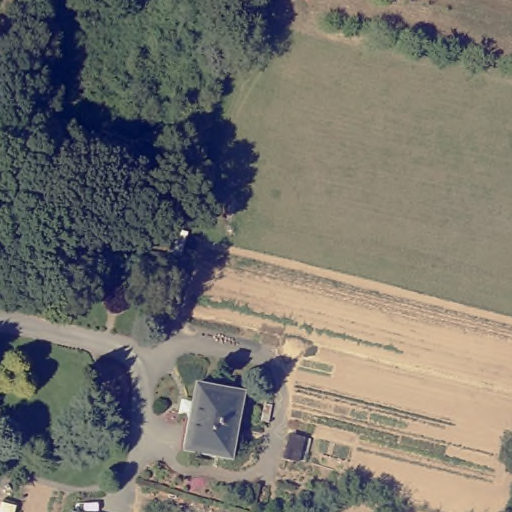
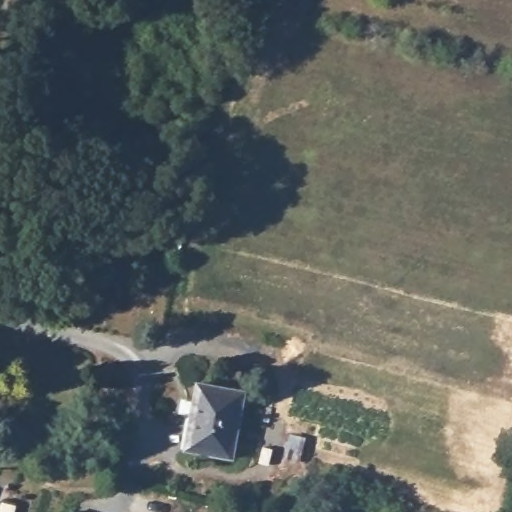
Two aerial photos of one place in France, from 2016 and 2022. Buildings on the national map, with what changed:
unchanged [(197,383),(244,393),(232,458),(186,449),(197,383)]

